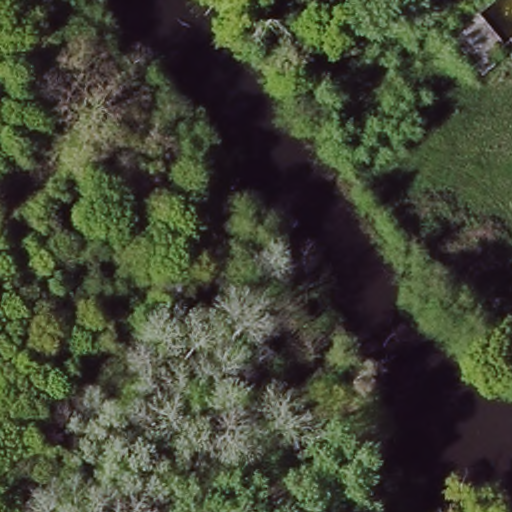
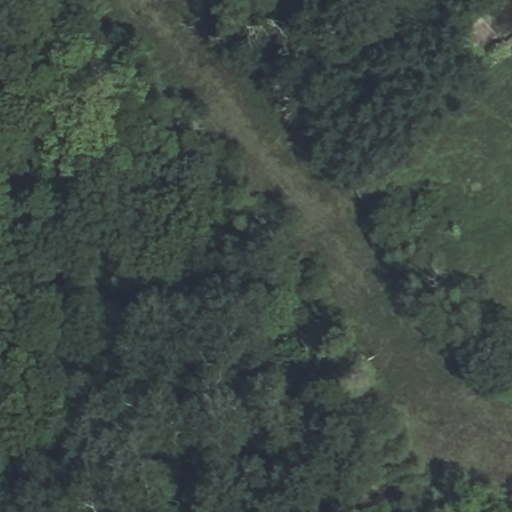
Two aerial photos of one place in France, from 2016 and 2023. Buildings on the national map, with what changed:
unchanged [(477,66),(444,28),(476,0),(508,39),(477,66)]

